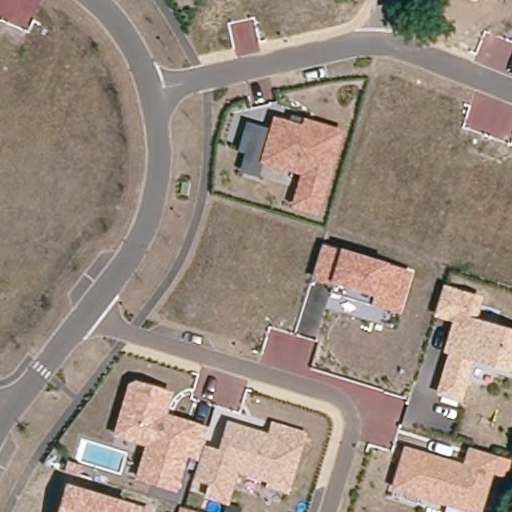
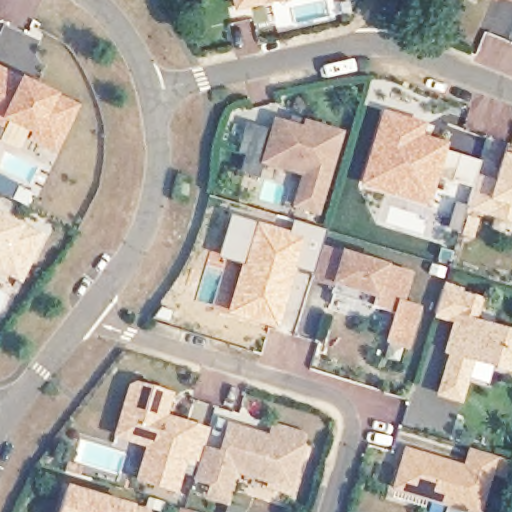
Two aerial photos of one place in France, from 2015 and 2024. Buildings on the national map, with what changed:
new [(234,0),(270,0),(236,8),(234,0)]
new [(20,77),(59,94),(81,104),(58,154),(27,140),(30,134),(5,124),(1,129),(0,129),(0,68),(20,77)]
new [(426,124),(422,134),(449,143),(447,150),(479,160),(473,178),(471,185),(440,176),(429,208),(360,187),(383,110),(426,124)]
unchanged [(245,155),(238,149),(247,123),(270,129),(274,116),(291,121),(293,115),(342,130),(319,215),(291,208),(300,175),(263,165),(260,177),(241,170),(245,155)]
new [(465,206),(473,178),(493,184),(501,158),(512,161),(512,220),(502,218),(465,206)]
new [(274,329),(225,314),(241,264),(218,257),(231,215),(256,223),(256,222),(288,232),(292,220),(324,229),(319,244),(322,244),(314,274),(310,274),(294,267),(274,329)]
new [(0,271),(0,219),(35,236),(41,239),(21,281),(0,271)]
unchanged [(330,293),(331,286),(312,282),(322,244),(339,249),(386,263),(413,271),(400,314),(330,293)]
unchanged [(444,354),(452,323),(434,317),(442,285),(483,299),(478,320),(512,331),(512,373),(474,362),(463,402),(437,394),(448,354),(444,354)]
new [(400,314),(404,302),(422,307),(410,350),(384,342),(393,313),(400,314)]
unchanged [(144,446),(112,437),(125,388),(134,381),(172,393),(166,414),(208,427),(198,462),(187,458),(176,494),(135,480),(144,446)]
unchanged [(205,447),(219,451),(227,422),(267,434),(271,421),(308,433),(288,496),(264,489),(266,482),(236,474),(228,506),(204,499),(208,485),(194,483),(205,447)]
unchanged [(463,464),(468,448),(512,461),(512,464),(509,479),(493,474),(482,512),(466,512),(391,489),(403,446),(463,464)]
unchanged [(66,485),(133,504),(149,509),(148,512),(58,512),(66,485)]

